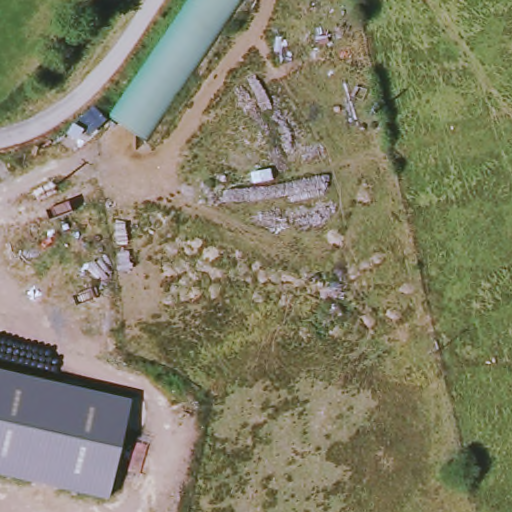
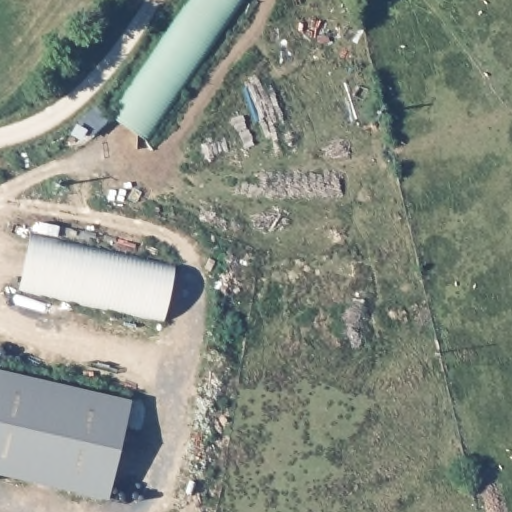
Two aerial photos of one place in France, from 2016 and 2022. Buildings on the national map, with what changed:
unchanged [(245,0),(149,141),(110,115),(189,0),(245,0)]
new [(32,235),(174,265),(163,322),(19,293),(32,235)]
unchanged [(131,403),(109,501),(0,476),(0,373),(131,403)]

